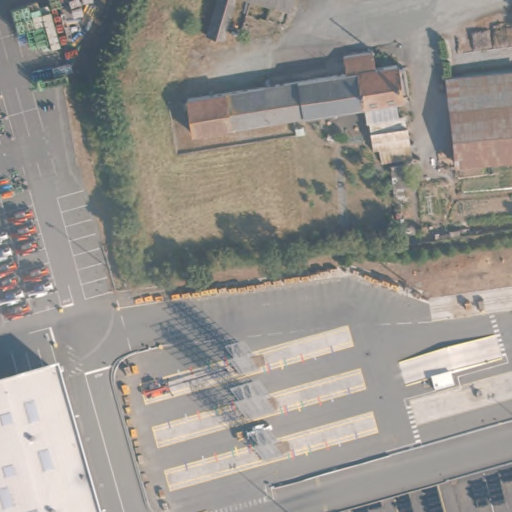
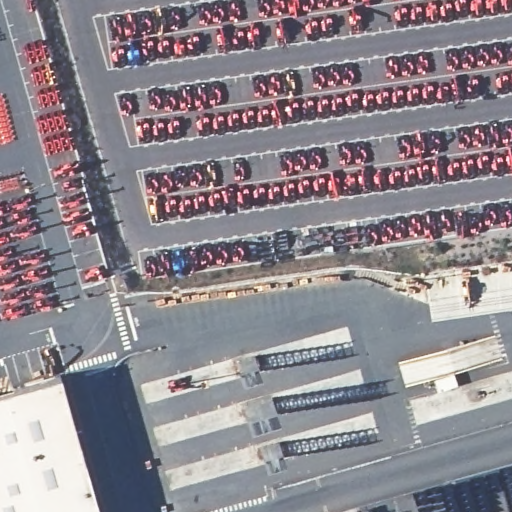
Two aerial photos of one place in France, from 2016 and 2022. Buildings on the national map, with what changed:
demolished [(227,0),(249,0),(235,42),(216,36),(227,0)]
demolished [(300,14),(252,0),(304,0),(300,14)]
demolished [(397,103),(358,110),(353,72),(343,73),(340,57),(368,53),(370,71),(391,67),(397,103)]
demolished [(512,154),(453,159),(445,80),(512,71),(512,154)]
demolished [(343,73),(353,72),(358,110),(298,120),(293,81),(343,73)]
demolished [(293,81),(298,120),(190,137),(185,99),(293,81)]
unchanged [(97,512),(0,512),(0,398),(60,382),(97,512)]

